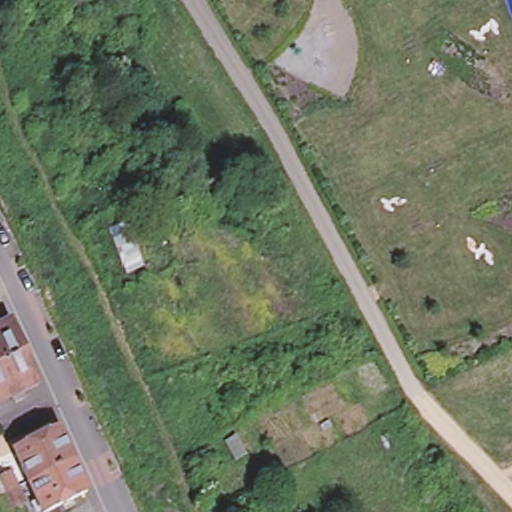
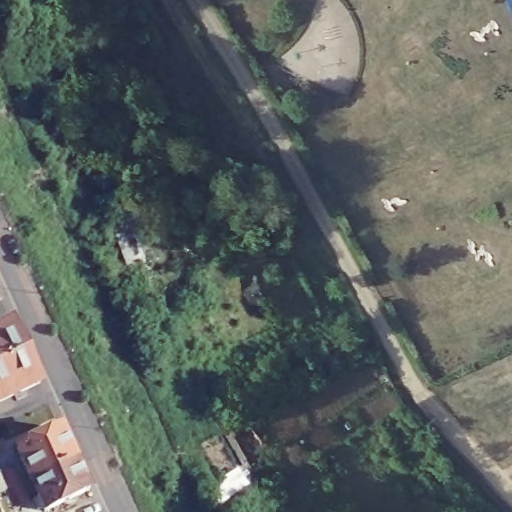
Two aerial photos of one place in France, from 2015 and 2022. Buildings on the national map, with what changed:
unchanged [(130,222),(143,268),(126,276),(109,229),(130,222)]
unchanged [(11,319),(25,350),(0,361),(0,324),(11,319)]
unchanged [(39,381),(0,400),(0,361),(25,350),(39,381)]
unchanged [(25,476),(12,444),(55,425),(68,455),(25,476)]
unchanged [(68,455),(82,486),(40,506),(25,476),(68,455)]
unchanged [(13,505),(7,491),(0,479),(0,475),(12,470),(20,486),(26,500),(13,505)]

